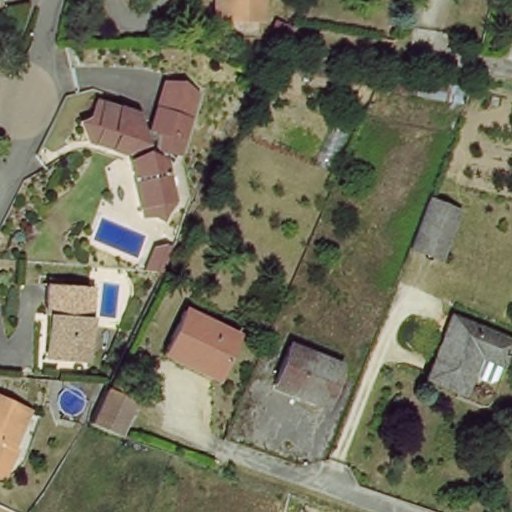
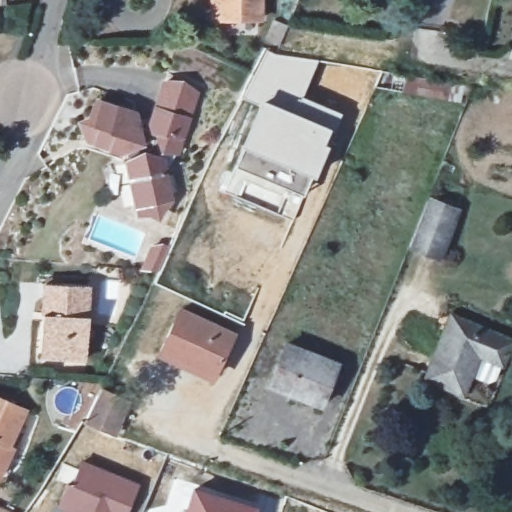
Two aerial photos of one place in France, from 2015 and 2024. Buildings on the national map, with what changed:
unchanged [(212,0),(263,0),(263,17),(223,18),(213,19),(212,0)]
new [(263,46),(276,51),(319,60),(304,97),(342,113),(334,129),(259,99),(256,105),(238,98),(263,46)]
unchanged [(183,150),(178,157),(176,162),(169,163),(178,199),(174,201),(164,214),(156,209),(146,212),(133,159),(134,156),(135,156),(133,146),(128,150),(92,138),(85,121),(95,117),(100,100),(141,113),(144,126),(155,128),(170,80),(186,82),(201,90),(183,150)]
new [(256,105),(259,99),(334,129),(326,144),(329,146),(314,177),(239,144),(256,105)]
new [(239,144),(314,177),(294,221),(221,192),(239,144)]
unchanged [(459,208),(439,261),(413,250),(433,199),(459,208)]
unchanged [(153,252),(173,253),(162,277),(144,272),(153,252)]
unchanged [(48,310),(51,278),(95,283),(92,313),(94,313),(90,355),(55,352),(44,351),(48,310)]
unchanged [(221,375),(167,350),(187,306),(241,335),(221,375)]
unchanged [(499,364),(479,353),(463,393),(428,377),(454,312),(511,335),(499,364)]
unchanged [(330,403),(299,391),(299,387),(279,379),(295,341),(346,362),(330,403)]
unchanged [(91,420),(108,386),(134,395),(118,429),(91,420)]
unchanged [(10,446),(5,443),(3,448),(0,447),(0,398),(26,410),(10,446)]
new [(64,482),(71,485),(80,462),(139,487),(128,512),(53,512),(55,506),(64,482)]
new [(259,509),(258,512),(184,512),(191,487),(259,509)]
unchanged [(0,512),(0,508),(10,512),(0,512)]

